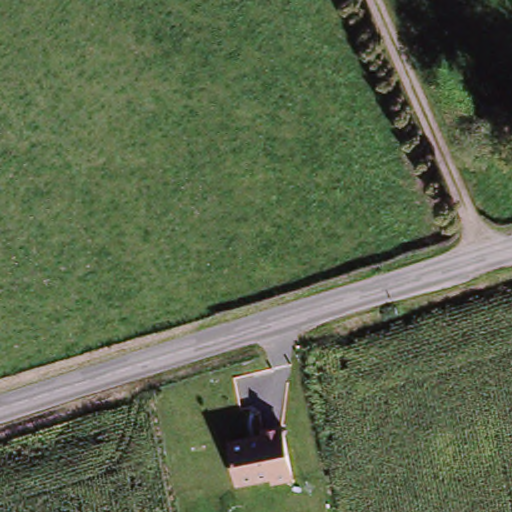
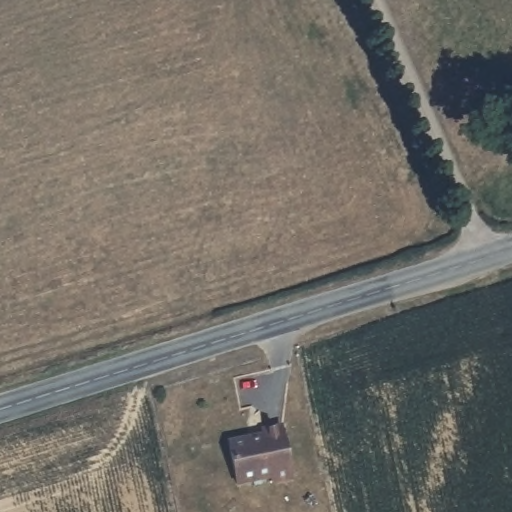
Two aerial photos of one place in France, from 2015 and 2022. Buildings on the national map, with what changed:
unchanged [(262,432),(261,428),(281,424),(292,476),(272,480),(271,474),(236,482),(227,439),(262,432)]

